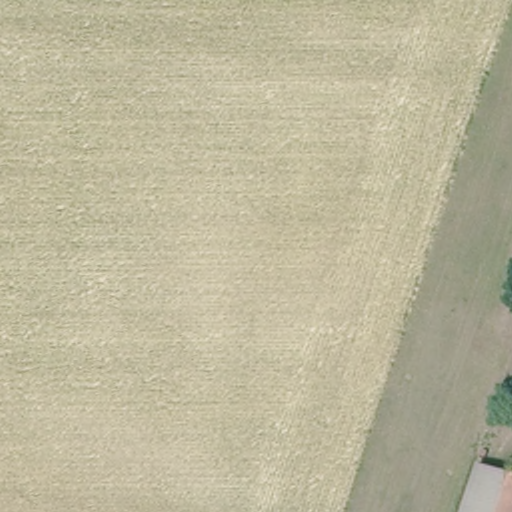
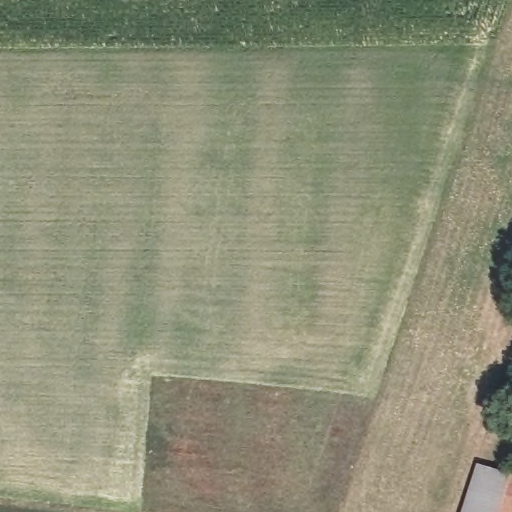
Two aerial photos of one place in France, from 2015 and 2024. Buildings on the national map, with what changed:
unchanged [(511,474),(500,512),(462,512),(477,464),(496,469),(511,474)]
unchanged [(512,475),(512,512),(500,512),(511,474),(512,475)]

